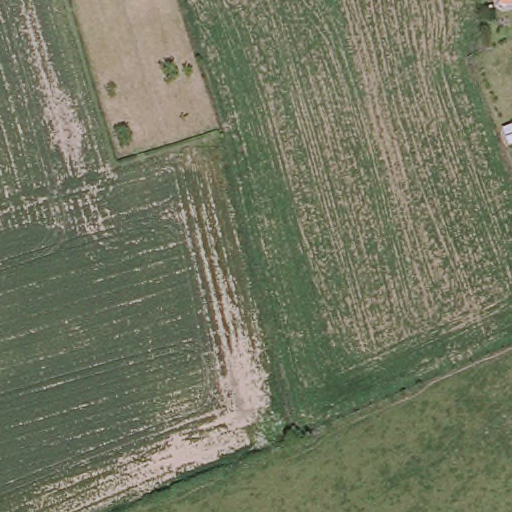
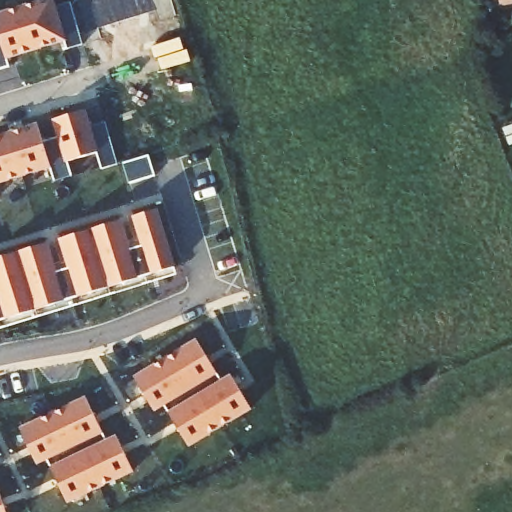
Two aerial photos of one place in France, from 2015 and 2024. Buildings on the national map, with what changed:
new [(52,0),(55,8),(70,3),(82,45),(67,50),(64,41),(35,50),(22,8),(47,0),(52,0)]
unchanged [(499,0),(512,0),(512,2),(500,5),(499,0)]
new [(35,50),(7,59),(9,68),(0,70),(0,14),(22,8),(35,50)]
new [(86,114),(90,128),(105,123),(117,165),(101,170),(97,156),(69,164),(55,122),(86,114)]
new [(9,135),(39,126),(44,144),(60,138),(72,178),(55,183),(51,169),(22,177),(9,135)]
new [(22,177),(0,183),(0,138),(9,135),(22,177)]
new [(57,276),(70,272),(61,240),(121,222),(130,253),(127,243),(141,239),(144,249),(134,217),(156,211),(174,268),(0,322),(0,258),(47,244),(57,276)]
new [(67,262),(70,272),(57,276),(54,266),(67,262)]
new [(222,382),(231,376),(251,409),(188,447),(163,405),(154,411),(134,378),(197,341),(222,382)]
new [(107,442),(117,437),(133,472),(67,503),(47,459),(36,464),(20,430),(86,398),(107,442)]
new [(0,496),(6,512),(0,512),(0,496)]

